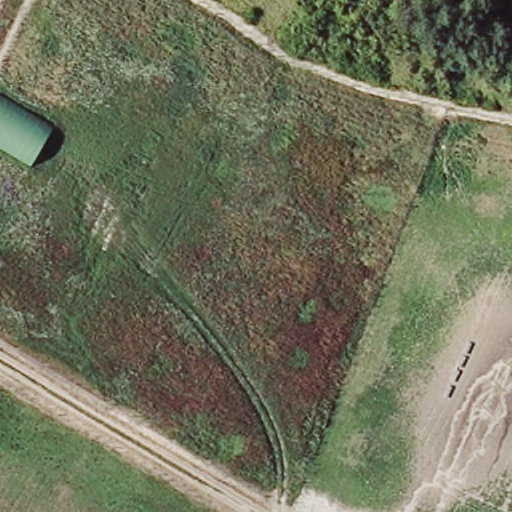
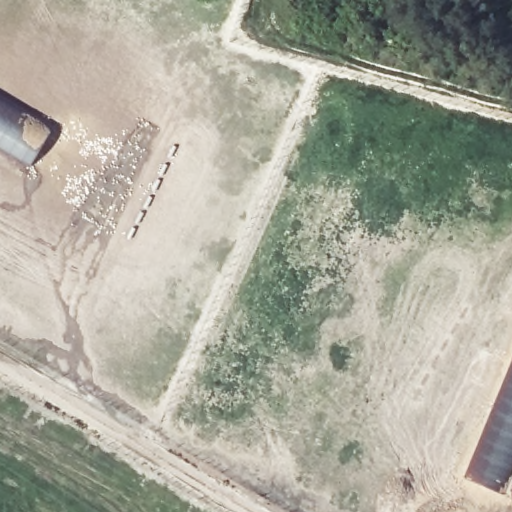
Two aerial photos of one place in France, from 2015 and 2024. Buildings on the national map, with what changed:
unchanged [(55,126),(32,164),(0,146),(0,94),(55,126)]
new [(512,357),(512,497),(463,476),(512,357)]

